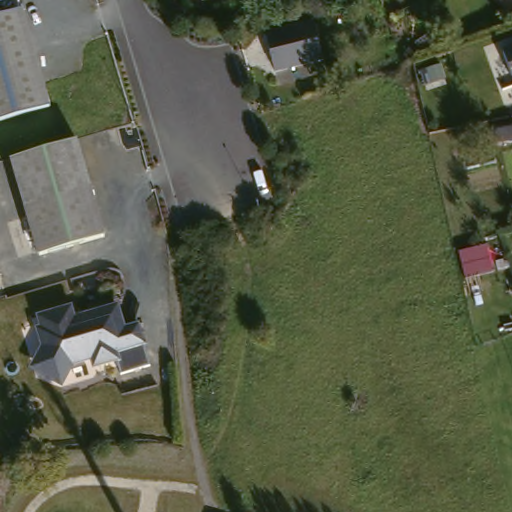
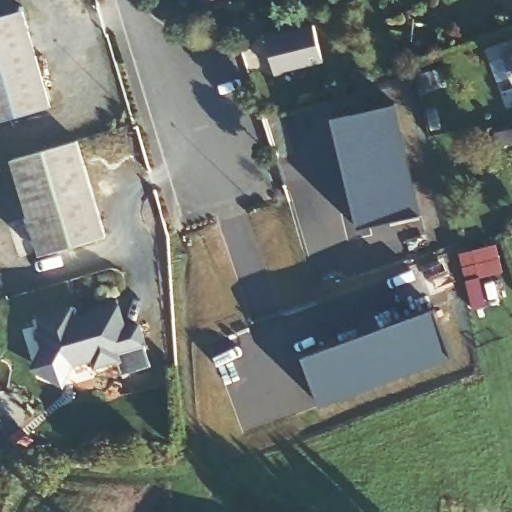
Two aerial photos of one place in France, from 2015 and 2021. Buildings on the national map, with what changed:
unchanged [(57,102),(0,121),(0,14),(25,6),(57,102)]
unchanged [(330,58),(280,72),(270,39),(320,25),(330,58)]
unchanged [(512,50),(512,64),(507,52),(512,50)]
unchanged [(447,64),(452,83),(432,88),(427,69),(447,64)]
new [(422,212),(359,227),(332,117),(395,102),(422,212)]
unchanged [(512,132),(512,145),(505,147),(501,135),(512,132)]
unchanged [(10,162),(79,142),(94,189),(29,210),(10,162)]
unchanged [(94,189),(110,237),(44,258),(29,210),(94,189)]
new [(458,253),(495,244),(502,271),(482,277),(486,303),(472,309),(458,253)]
unchanged [(82,317),(125,306),(130,327),(144,322),(155,366),(125,373),(121,358),(85,369),(71,386),(30,362),(42,347),(38,316),(80,307),(82,317)]
new [(455,356),(320,406),(302,357),(435,308),(455,356)]

